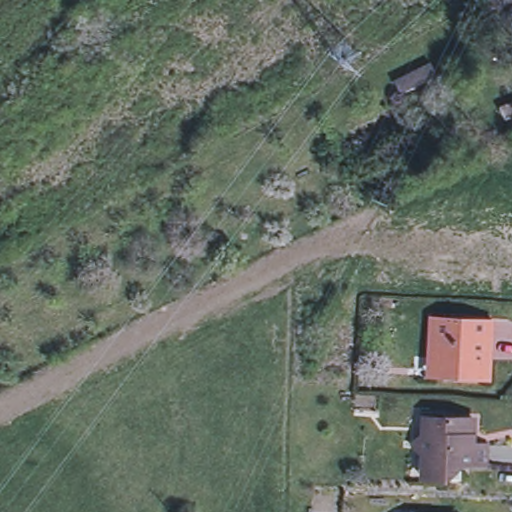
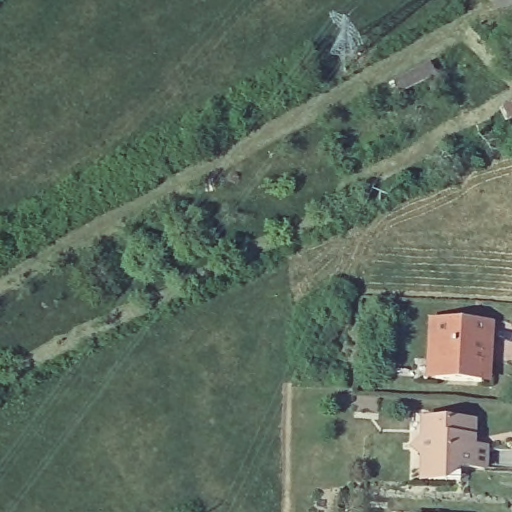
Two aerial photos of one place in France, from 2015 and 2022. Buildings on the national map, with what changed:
unchanged [(432,63),(440,78),(398,96),(392,79),(432,63)]
unchanged [(430,363),(433,319),(492,323),(490,356),(489,383),(482,382),(435,380),(430,379),(430,363)]
unchanged [(448,480),(423,479),(425,456),(415,446),(425,439),(425,419),(474,421),(473,447),(487,447),(486,467),(462,466),(461,480),(448,480)]

